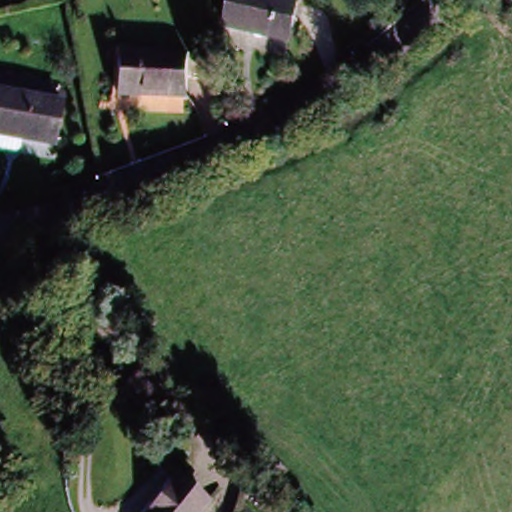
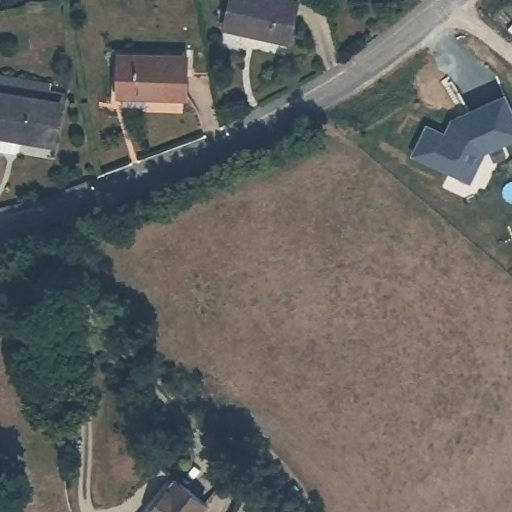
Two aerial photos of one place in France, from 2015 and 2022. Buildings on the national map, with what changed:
unchanged [(290,38),(252,31),(250,36),(226,31),(233,0),(289,0),(300,2),(290,38)]
unchanged [(187,101),(118,104),(116,59),(186,55),(187,101)]
unchanged [(60,134),(27,135),(26,150),(0,150),(0,95),(59,92),(60,134)]
new [(444,140),(451,126),(456,123),(460,125),(470,120),(469,117),(504,102),(512,121),(512,142),(483,155),(468,186),(412,159),(426,131),(444,140)]
unchanged [(207,506),(202,512),(152,512),(175,482),(207,506)]

